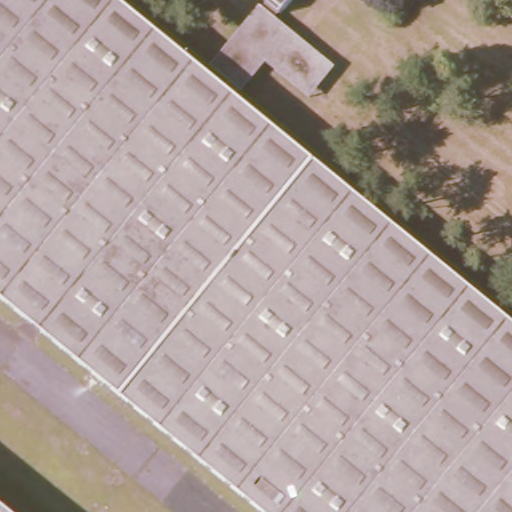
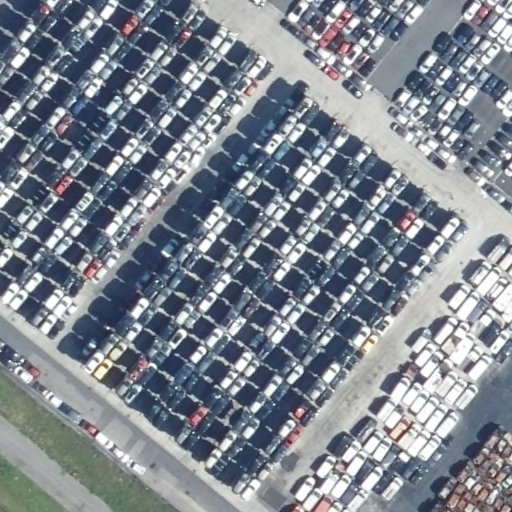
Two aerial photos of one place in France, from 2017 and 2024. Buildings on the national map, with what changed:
demolished [(230,91),(512,319),(512,512),(266,512),(0,295),(0,0),(119,0),(221,83),(230,91)]
demolished [(275,3),(271,0),(283,0),(278,6),(275,3)]
unchanged [(0,505),(9,512),(0,512),(0,505)]

